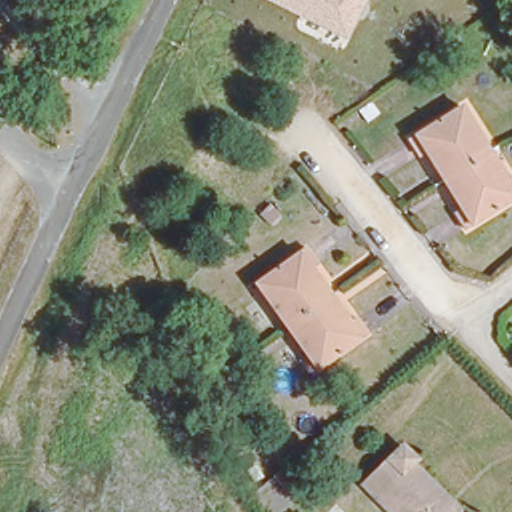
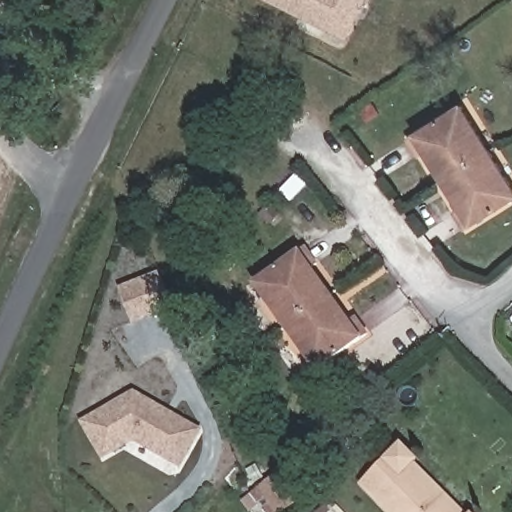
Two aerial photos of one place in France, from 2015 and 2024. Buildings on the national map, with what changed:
unchanged [(266,0),(370,0),(350,40),(266,0)]
unchanged [(428,149),(416,132),(468,97),(496,142),(505,156),(512,167),(512,195),(473,221),(462,204),(468,200),(449,170),(434,147),(428,149)]
unchanged [(252,281),(304,246),(314,260),(309,263),(328,292),(282,325),(252,281)]
new [(153,272),(164,297),(167,303),(148,311),(130,320),(117,288),(135,280),(153,272)]
unchanged [(349,321),(354,317),(363,330),(312,367),(282,325),(328,292),(349,321)]
new [(133,393),(197,432),(178,466),(132,438),(102,456),(82,422),(133,393)]
unchanged [(362,481),(402,441),(415,453),(409,460),(463,512),(394,512),(362,481)]
new [(302,499),(284,512),(262,512),(257,505),(249,511),(242,501),(282,471),(302,499)]
unchanged [(475,510),(477,512),(472,512),(475,510)]

